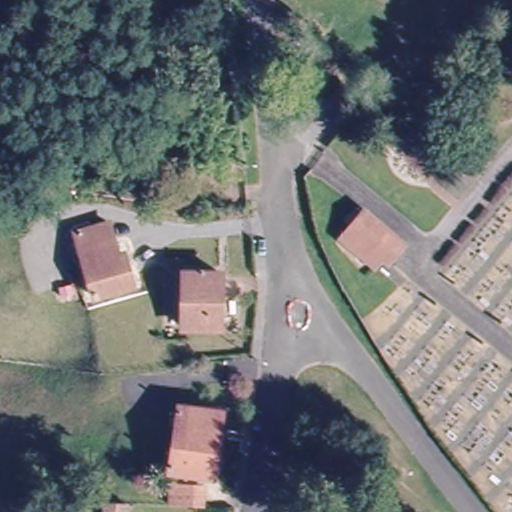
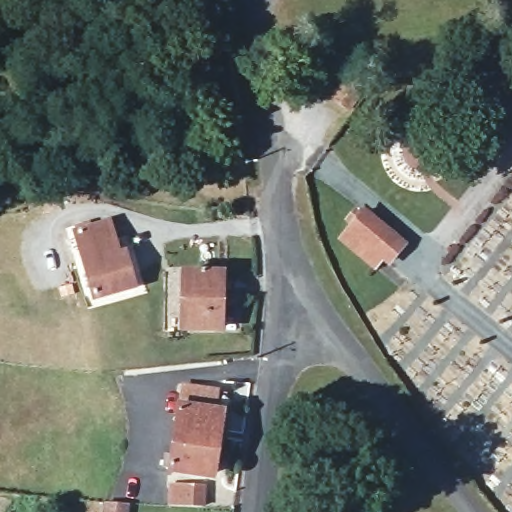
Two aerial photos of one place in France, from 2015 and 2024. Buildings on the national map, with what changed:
unchanged [(348,111),(332,99),(343,84),(360,96),(348,111)]
unchanged [(371,263),(342,239),(353,225),(347,220),(355,211),(361,216),(364,212),(403,245),(388,262),(382,257),(375,267),(371,263)]
unchanged [(133,287),(95,298),(74,227),(89,222),(91,228),(109,222),(114,240),(107,242),(112,257),(124,254),(133,287)]
unchanged [(220,324),(183,323),(184,268),(221,269),(220,324)]
unchanged [(211,476),(172,470),(172,468),(163,467),(165,454),(174,456),(181,407),(220,412),(211,476)]
unchanged [(204,508),(171,506),(172,486),(205,487),(204,508)]
unchanged [(119,512),(106,512),(106,510),(119,512)]

